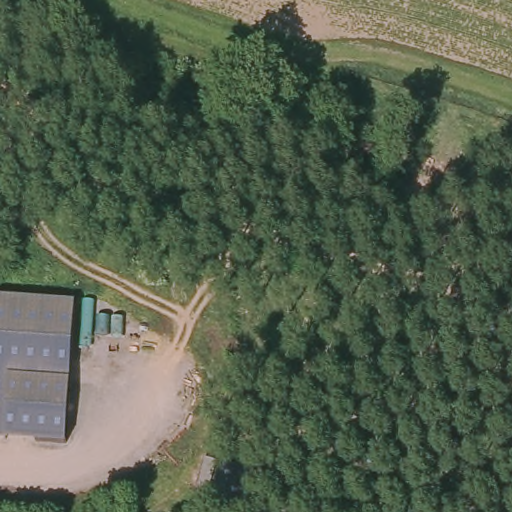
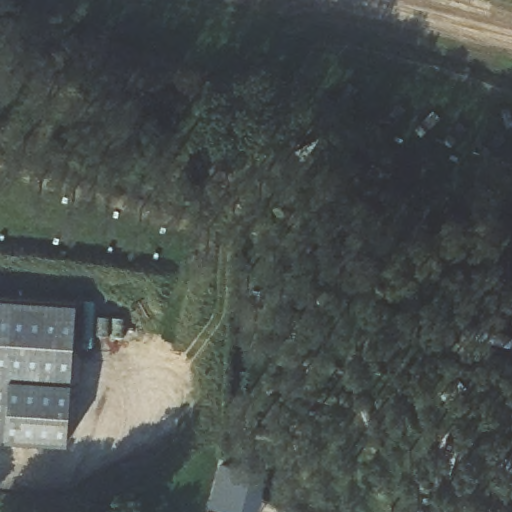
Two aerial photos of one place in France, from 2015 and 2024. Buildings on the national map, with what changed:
unchanged [(4,440),(0,440),(0,298),(75,302),(66,445),(4,440)]
new [(232,512),(209,506),(220,462),(255,471),(246,512),(232,512)]

